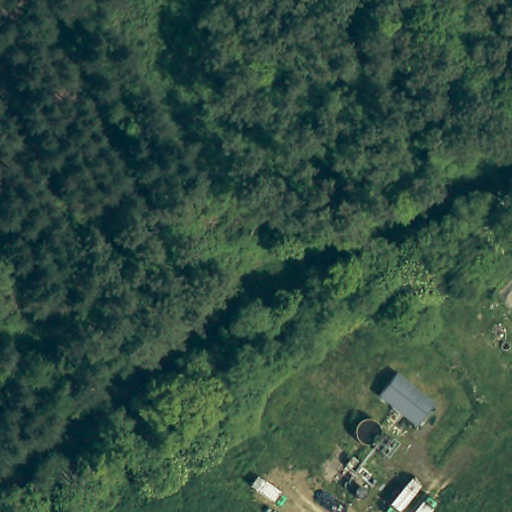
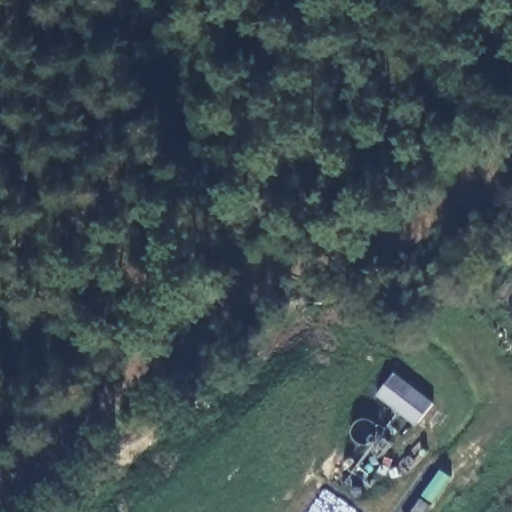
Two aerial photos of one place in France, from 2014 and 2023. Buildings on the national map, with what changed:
unchanged [(430,402),(414,423),(373,392),(389,371),(430,402)]

